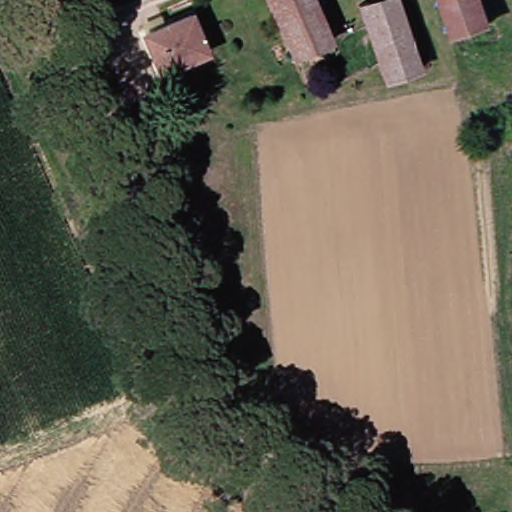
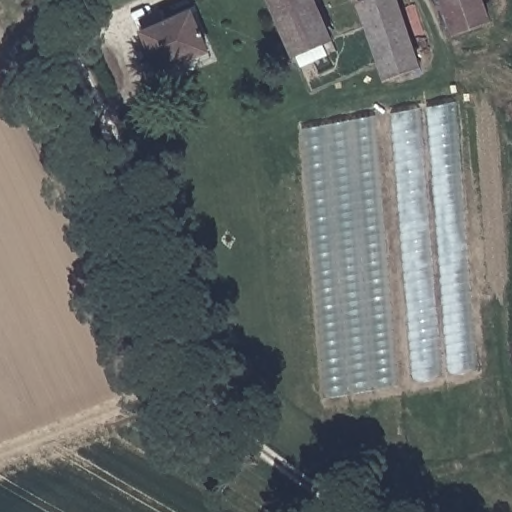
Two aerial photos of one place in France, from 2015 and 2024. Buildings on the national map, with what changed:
unchanged [(278,0),(318,0),(335,39),(301,53),(278,0)]
unchanged [(383,50),(364,5),(376,0),(404,0),(429,68),(394,81),(383,50)]
unchanged [(496,25),(467,38),(452,0),(487,0),(496,25)]
unchanged [(149,29),(195,10),(211,49),(164,68),(149,29)]
new [(457,103),(472,369),(414,384),(394,114),(457,103)]
new [(392,388),(325,402),(303,129),(369,117),(392,388)]

